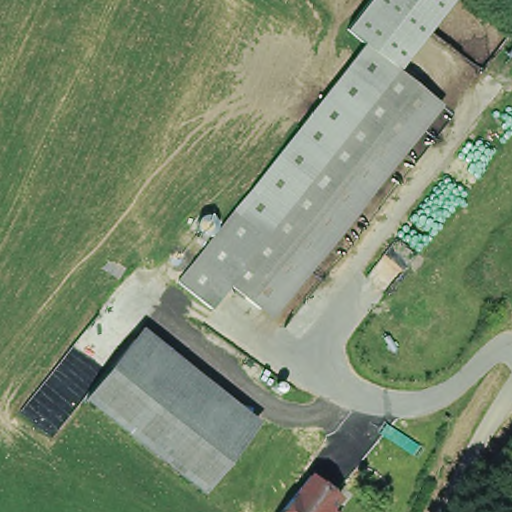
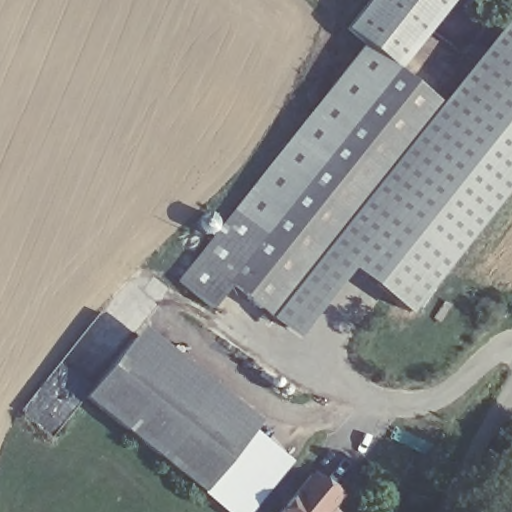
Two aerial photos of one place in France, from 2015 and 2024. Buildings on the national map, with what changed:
unchanged [(232,200),(363,42),(343,25),(364,0),(448,0),(394,64),(446,104),(272,316),(231,287),(218,305),(178,272),(232,200)]
new [(360,269),(305,339),(272,316),(446,104),(512,24),(512,196),(415,313),(360,269)]
unchanged [(94,385),(140,328),(256,423),(212,476),(209,481),(94,385)]
new [(258,512),(245,512),(209,481),(256,423),(300,456),(258,512)]
unchanged [(332,490),(324,502),(317,510),(320,512),(271,512),(305,468),(332,490)]

